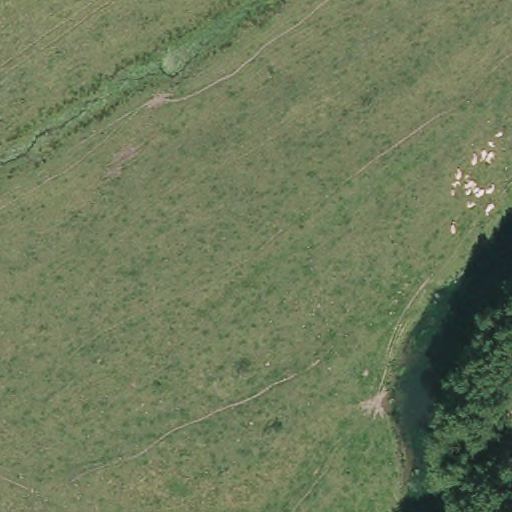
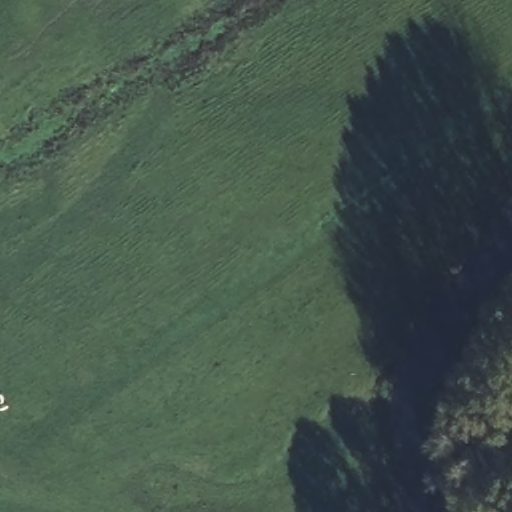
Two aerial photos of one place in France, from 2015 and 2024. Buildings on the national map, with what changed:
[]

